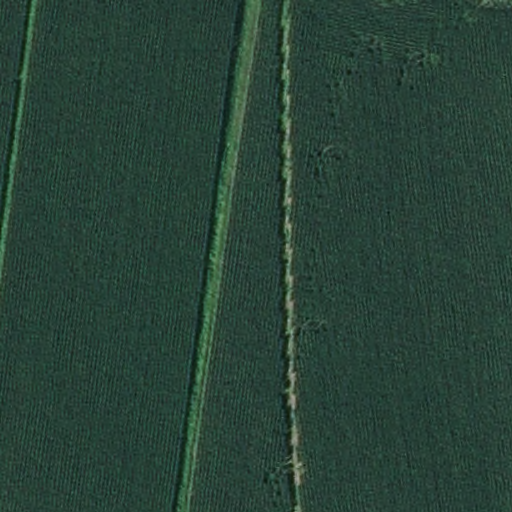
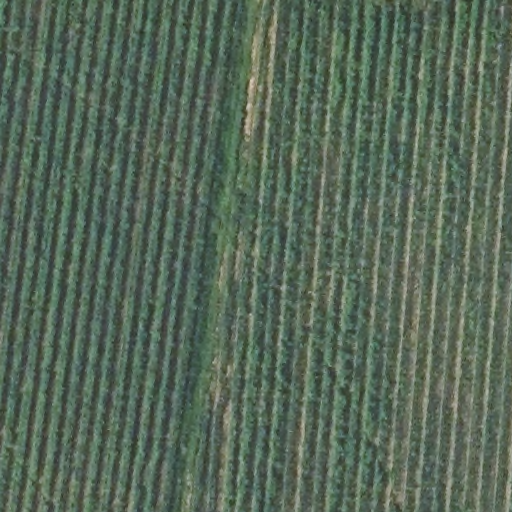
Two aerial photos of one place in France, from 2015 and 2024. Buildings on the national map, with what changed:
[]

